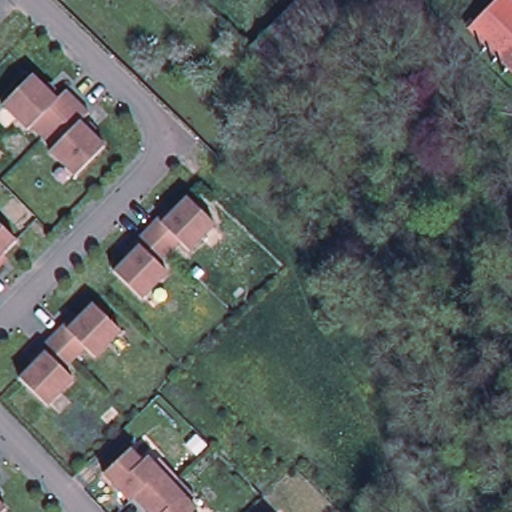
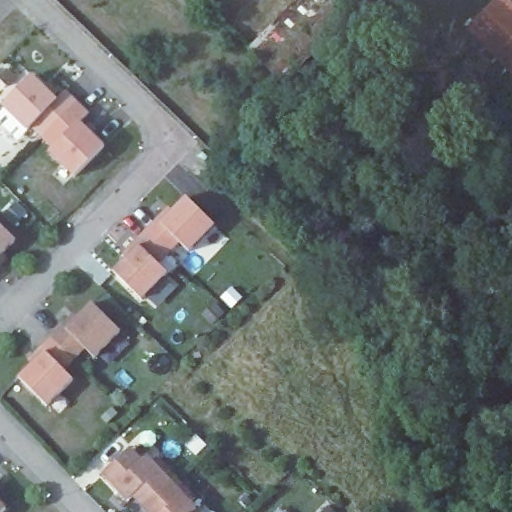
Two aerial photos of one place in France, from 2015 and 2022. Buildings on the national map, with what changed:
unchanged [(277,76),(243,41),(283,0),(335,0),(344,9),(277,76)]
unchanged [(502,0),(512,0),(512,69),(472,30),(502,0)]
unchanged [(45,135),(34,124),(30,127),(5,102),(35,72),(59,96),(68,87),(80,99),(45,135)]
unchanged [(80,99),(92,111),(83,119),(107,144),(77,174),(52,149),(55,145),(45,135),(80,99)]
unchanged [(217,227),(192,253),(182,244),(171,255),(148,232),(160,221),(170,210),(174,214),(190,199),(217,227)]
unchanged [(0,264),(0,219),(18,237),(5,251),(8,256),(0,264)]
unchanged [(115,273),(130,258),(126,254),(137,244),(148,232),(171,255),(160,266),(170,275),(143,302),(115,273)]
unchanged [(122,334),(97,360),(87,350),(77,361),(54,338),(65,327),(77,317),(80,321),(95,305),(122,334)]
unchanged [(65,372),(75,382),(50,408),(21,380),(32,368),(28,364),(42,351),(42,350),(54,338),(77,361),(65,372)]
unchanged [(142,511),(130,498),(126,502),(100,477),(127,451),(140,463),(145,458),(150,464),(155,460),(174,480),(142,511)]
unchanged [(187,504),(193,510),(191,512),(143,512),(142,511),(174,480),(192,499),(187,504)]
unchanged [(0,512),(0,497),(8,506),(2,512),(0,512)]

